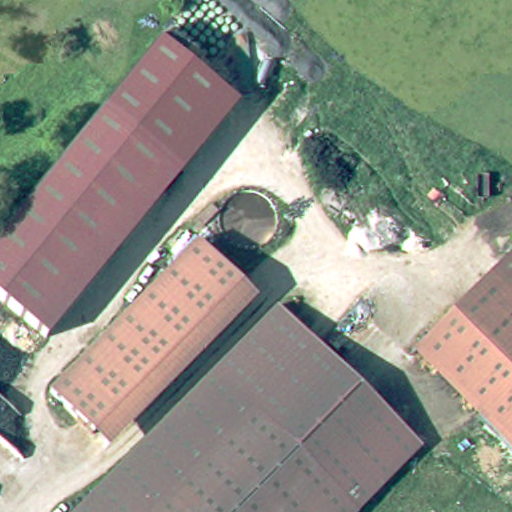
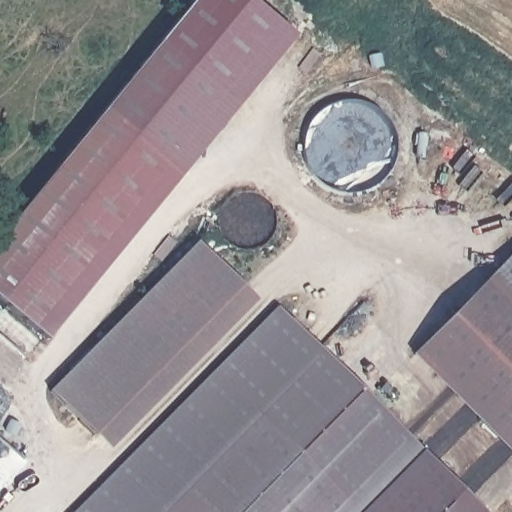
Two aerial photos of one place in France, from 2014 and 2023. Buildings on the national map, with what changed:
new [(163,40),(196,0),(254,0),(294,32),(236,102),(163,40)]
unchanged [(108,105),(163,40),(236,102),(181,170),(108,105)]
unchanged [(181,170),(48,330),(0,290),(0,235),(108,105),(181,170)]
unchanged [(97,350),(206,241),(248,284),(261,297),(111,450),(98,435),(59,396),(55,392),(97,350)]
unchanged [(512,259),(512,444),(419,355),(481,291),(494,277),(512,259)]
unchanged [(79,512),(284,306),(430,445),(362,512),(79,512)]
new [(362,512),(423,452),(487,512),(362,512)]

